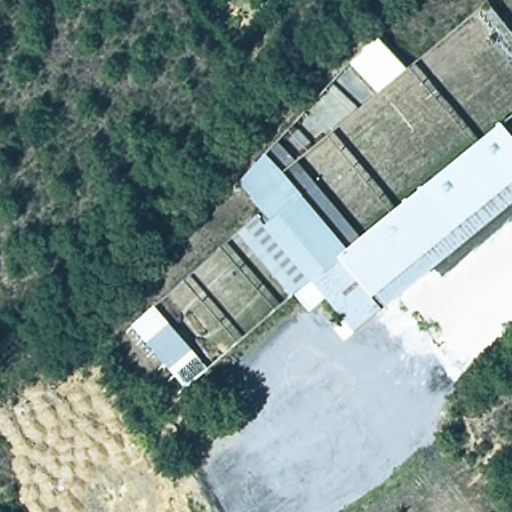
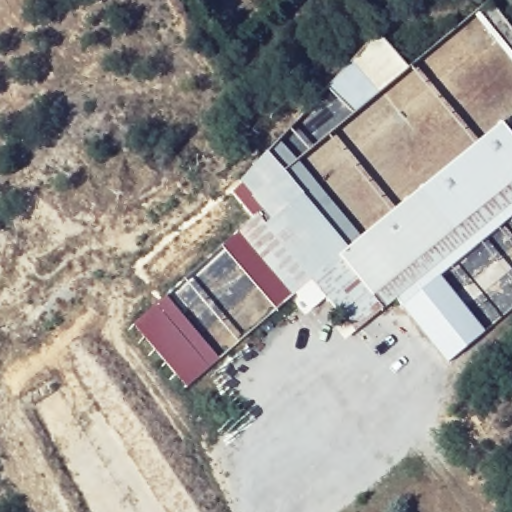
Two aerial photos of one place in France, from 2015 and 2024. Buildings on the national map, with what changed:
new [(408,67),(379,94),(352,64),(381,37),(408,67)]
unchanged [(269,215),(259,203),(260,202),(248,186),(260,173),(257,171),(261,166),(263,169),(272,159),(346,249),(500,124),(512,138),(512,210),(431,275),(357,336),(328,302),(313,314),(303,303),(247,233),(269,215)]
new [(512,210),(512,213),(510,211),(512,210)]
new [(482,332),(446,363),(399,302),(435,273),(482,332)]
unchanged [(209,373),(185,394),(130,326),(153,304),(209,373)]

